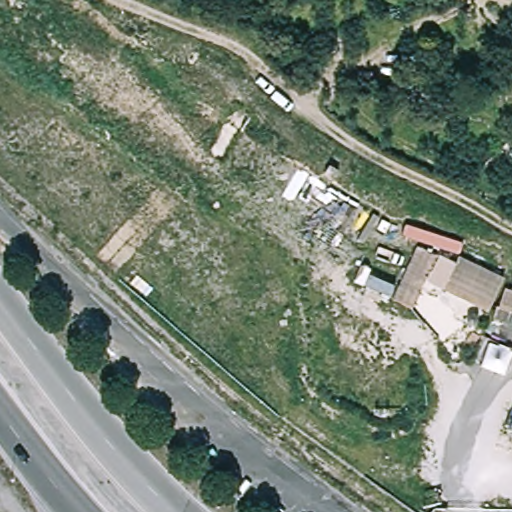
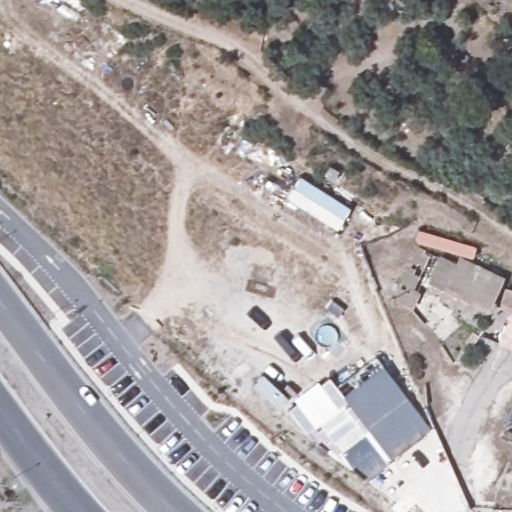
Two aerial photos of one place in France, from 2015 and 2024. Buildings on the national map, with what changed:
new [(339,230),(287,198),(300,177),(352,209),(339,230)]
unchanged [(440,257),(416,310),(396,300),(419,248),(440,257)]
unchanged [(504,281),(489,310),(448,289),(462,261),(504,281)]
unchanged [(512,312),(502,309),(508,290),(512,291),(512,312)]
new [(306,434),(287,409),(297,402),(294,398),(318,380),(321,384),(330,377),(343,394),(383,365),(431,428),(366,478),(306,434)]
new [(428,421),(452,481),(415,497),(390,438),(428,421)]

